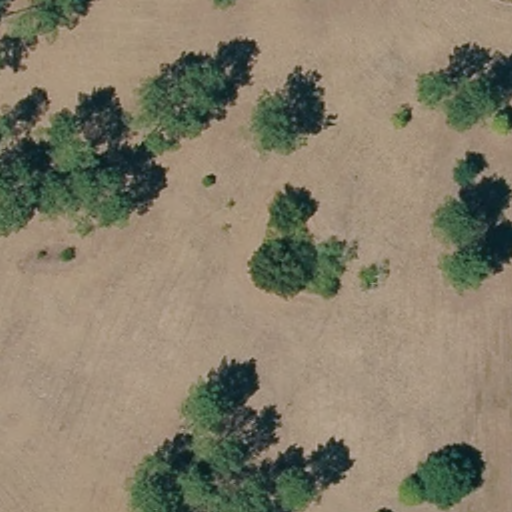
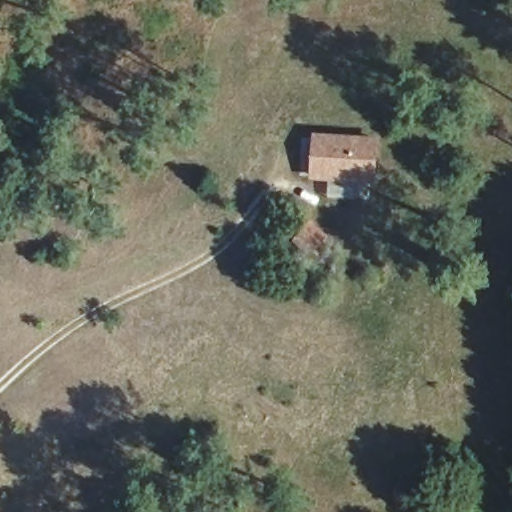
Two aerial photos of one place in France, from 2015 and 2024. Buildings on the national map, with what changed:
new [(311,179),(313,133),(379,136),(377,183),(311,179)]

